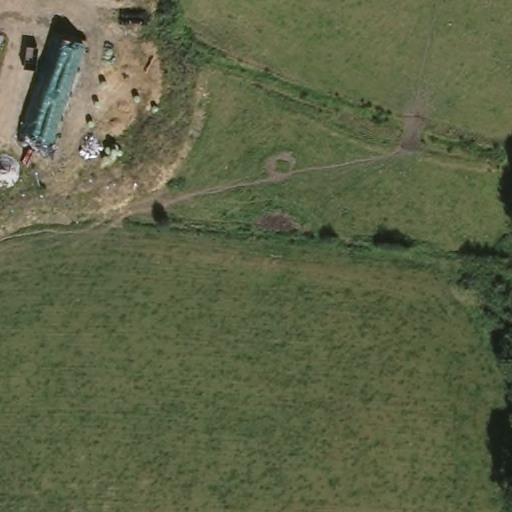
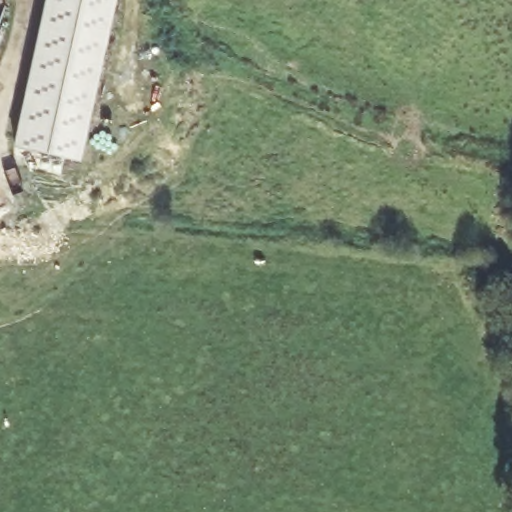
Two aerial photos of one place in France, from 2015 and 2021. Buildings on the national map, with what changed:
new [(12,147),(45,0),(116,0),(81,162),(12,147)]

